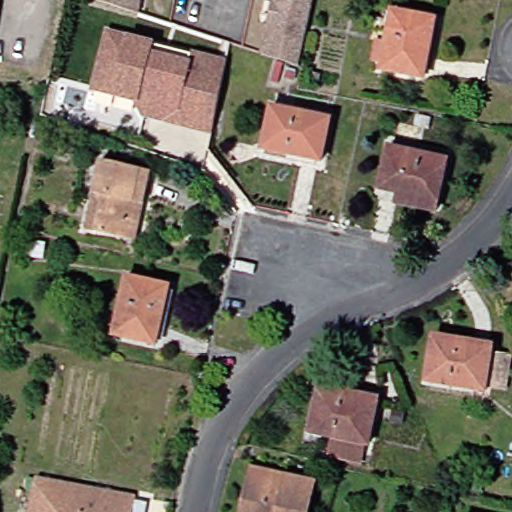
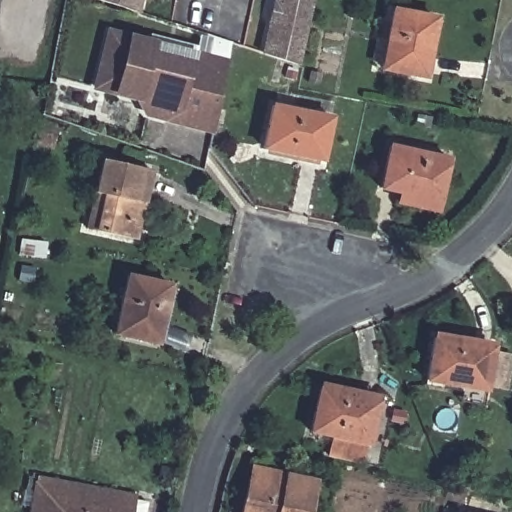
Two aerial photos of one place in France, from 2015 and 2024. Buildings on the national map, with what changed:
unchanged [(104,0),(145,0),(142,13),(104,0)]
unchanged [(301,60),(266,48),(275,1),(280,2),(280,0),(314,0),(301,60)]
unchanged [(424,79),(383,71),(394,13),(436,20),(424,79)]
unchanged [(99,70),(106,36),(149,44),(189,52),(224,59),(221,72),(216,96),(182,89),(178,108),(165,117),(164,118),(146,114),(137,100),(95,91),(99,70)]
unchanged [(165,117),(178,108),(182,89),(216,96),(210,126),(165,117)]
unchanged [(325,159),(267,147),(275,105),(334,117),(325,159)]
unchanged [(399,202),(401,190),(380,186),(389,142),(452,154),(444,198),(441,211),(399,202)]
unchanged [(98,198),(106,160),(146,168),(156,170),(149,203),(141,241),(101,233),(91,231),(98,198)]
unchanged [(160,341),(119,333),(130,275),(171,283),(160,341)]
unchanged [(504,346),(497,389),(469,384),(441,379),(438,378),(446,336),(504,346)]
unchanged [(373,445),(314,432),(325,389),(383,401),(373,445)]
unchanged [(253,469),(286,476),(317,482),(310,512),(244,512),(251,478),(253,469)]
unchanged [(34,512),(41,479),(64,484),(59,512),(34,512)]
unchanged [(59,512),(64,484),(99,491),(135,498),(139,498),(156,502),(155,512),(59,512)]

